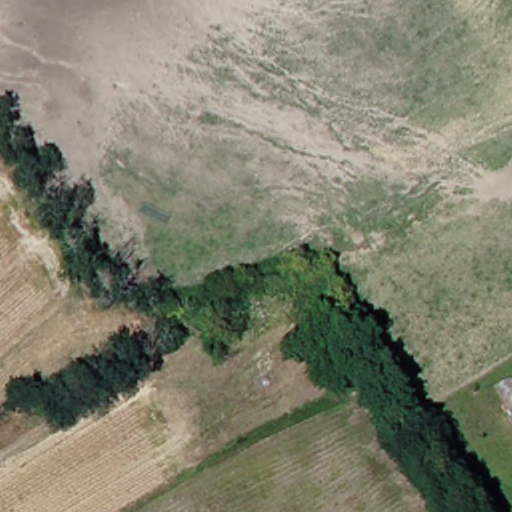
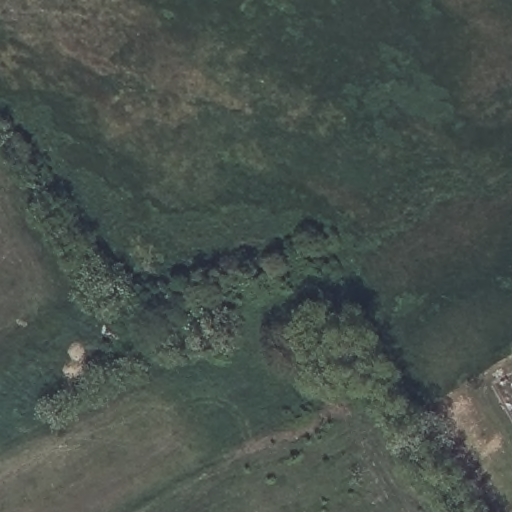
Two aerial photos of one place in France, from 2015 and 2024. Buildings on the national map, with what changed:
[]

